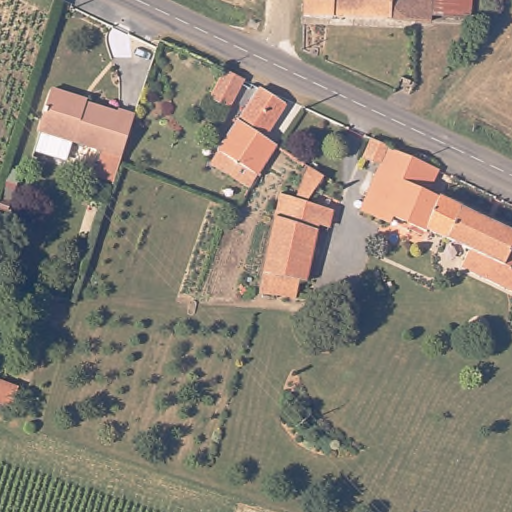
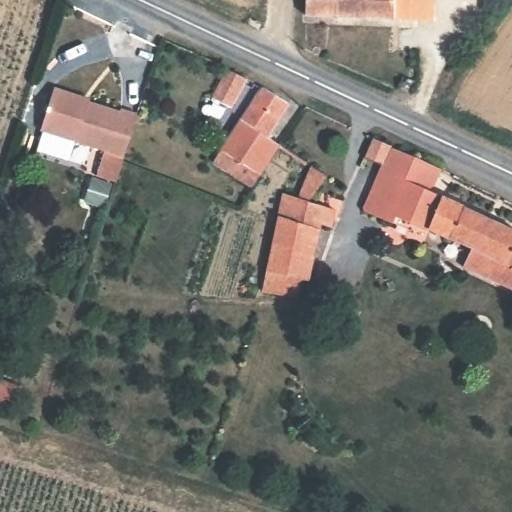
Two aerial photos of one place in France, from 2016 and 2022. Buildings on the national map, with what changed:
unchanged [(303,15),(298,13),(300,0),(403,0),(401,21),(303,15)]
unchanged [(401,21),(403,0),(425,0),(423,22),(401,21)]
unchanged [(446,9),(444,23),(423,22),(425,0),(472,0),(471,11),(446,9)]
unchanged [(228,104),(209,93),(225,61),(243,72),(228,104)]
unchanged [(41,127),(52,92),(54,84),(91,95),(90,100),(122,109),(123,106),(137,111),(124,152),(115,180),(95,174),(104,146),(41,127)]
unchanged [(219,152),(241,116),(259,85),(284,100),(265,133),(277,140),(260,169),(248,188),(242,184),(225,176),(213,170),(219,152)]
unchanged [(462,265),(470,245),(429,227),(427,228),(396,215),(393,223),(361,210),(380,167),(362,159),(372,135),(391,144),(441,166),(430,192),(512,229),(512,287),(497,280),(462,265)]
unchanged [(283,249),(291,220),(298,198),(308,165),(323,173),(306,202),(311,205),(320,210),(329,213),(327,226),(318,223),(307,257),(283,249)]
unchanged [(254,286),(259,269),(282,191),(298,198),(291,220),(283,249),(307,257),(300,281),(292,279),(287,297),(254,286)]
unchanged [(10,401),(5,399),(0,398),(0,376),(11,379),(17,381),(10,401)]

